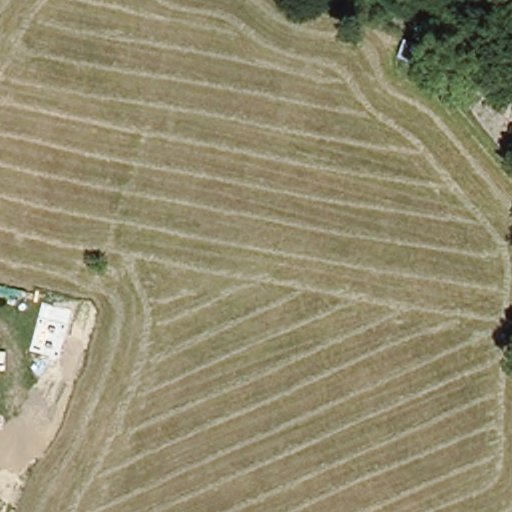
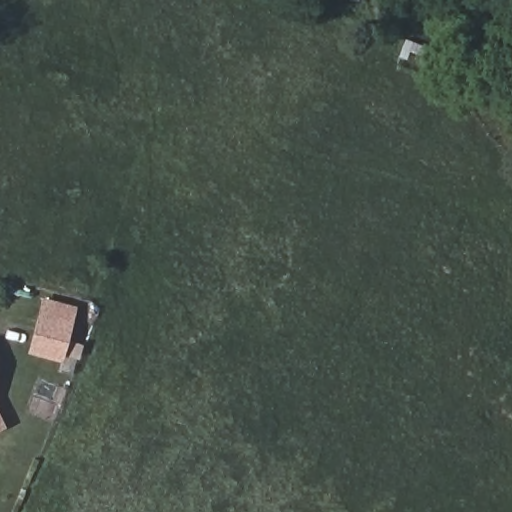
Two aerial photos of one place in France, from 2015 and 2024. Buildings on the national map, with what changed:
new [(77,306),(62,360),(27,353),(42,297),(77,306)]
unchanged [(5,425),(0,428),(0,413),(5,425)]

